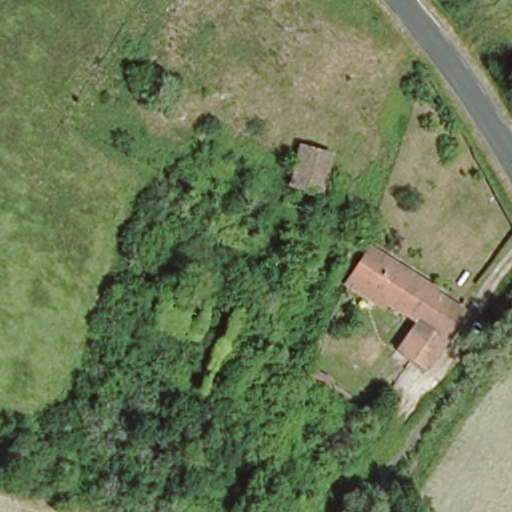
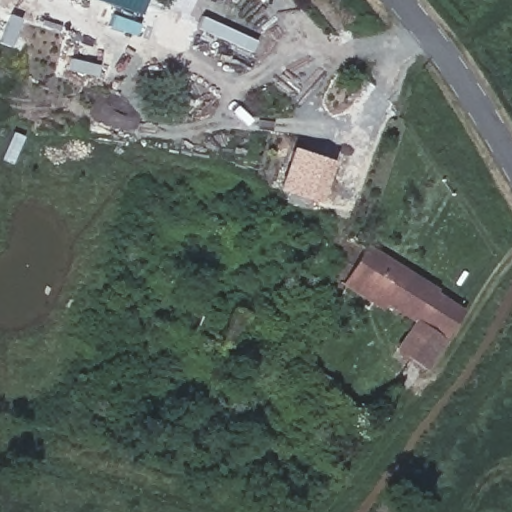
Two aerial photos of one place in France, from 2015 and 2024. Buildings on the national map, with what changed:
new [(141,0),(136,13),(99,0),(141,0)]
unchanged [(325,195),(285,182),(297,141),(336,149),(325,195)]
unchanged [(394,331),(402,336),(417,316),(379,290),(374,295),(352,282),(337,270),(348,255),(362,263),(372,238),(471,302),(414,380),(378,353),(394,331)]

